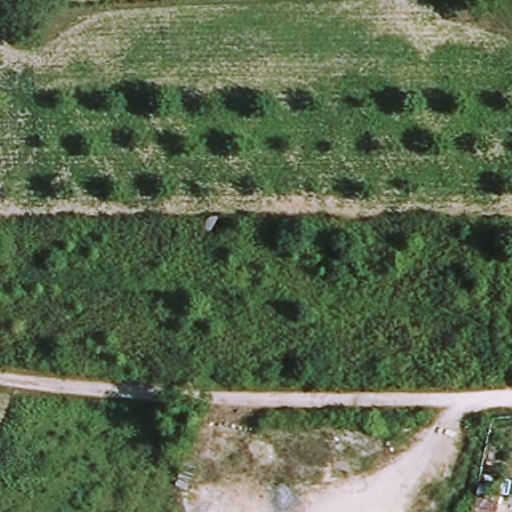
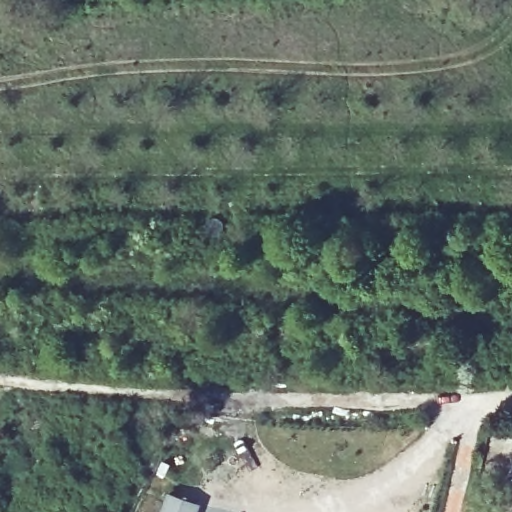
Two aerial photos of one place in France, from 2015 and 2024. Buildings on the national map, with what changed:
new [(201,504),(198,512),(160,512),(167,492),(201,504)]

